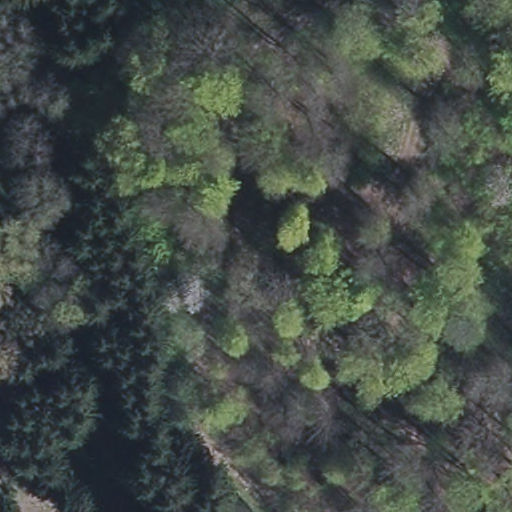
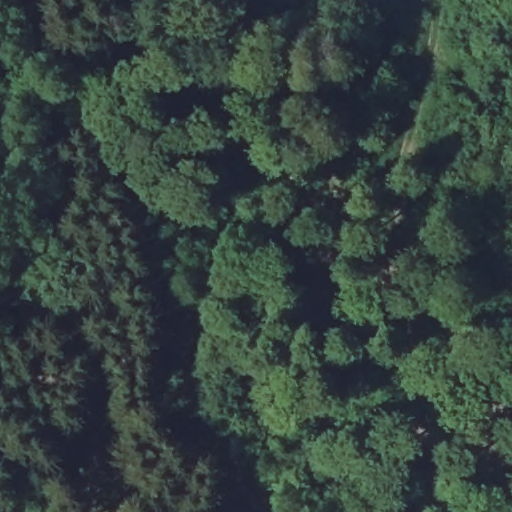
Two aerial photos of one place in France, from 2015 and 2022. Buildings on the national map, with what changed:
[]

